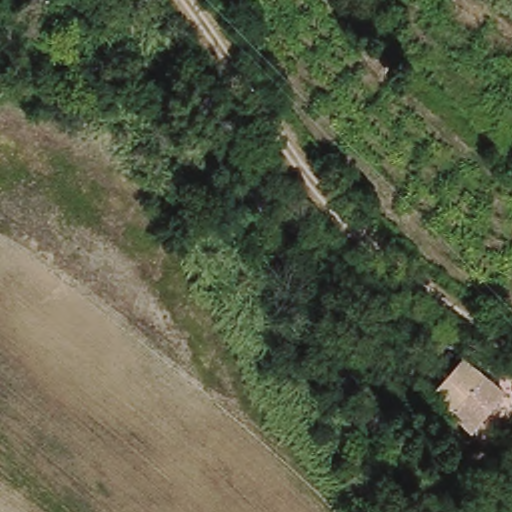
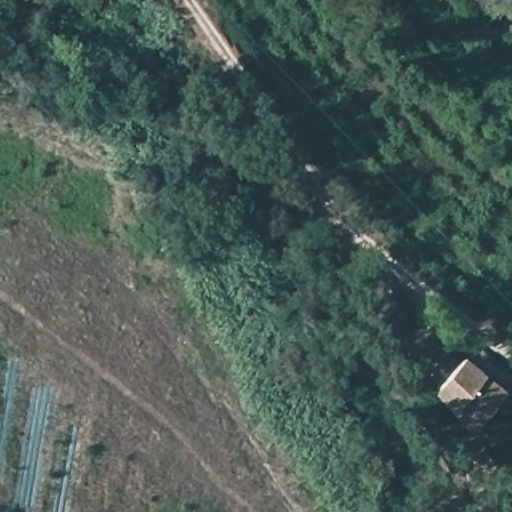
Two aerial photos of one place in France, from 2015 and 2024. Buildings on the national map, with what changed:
unchanged [(449,377),(464,360),(504,392),(471,434),(430,401),(449,377)]
unchanged [(502,466),(487,453),(496,442),(511,455),(502,466)]

